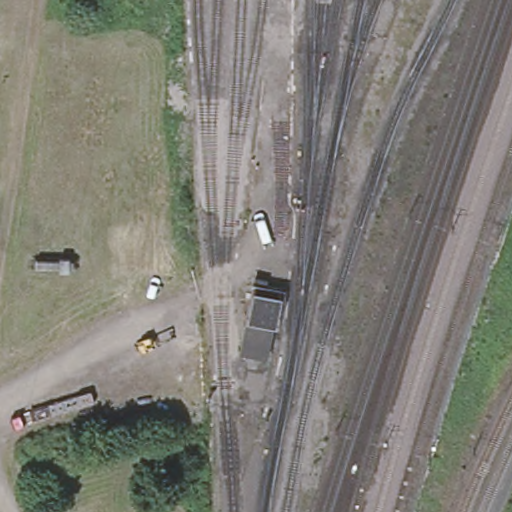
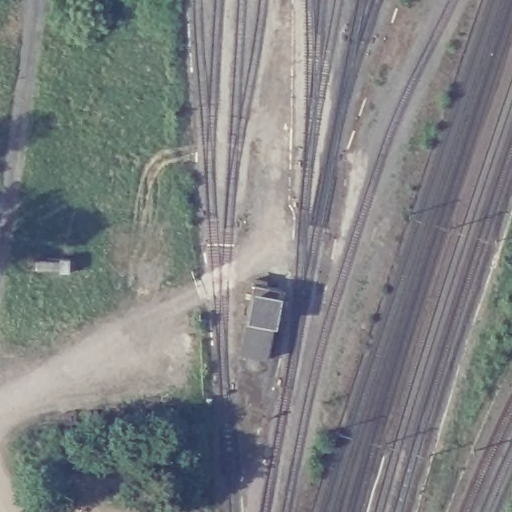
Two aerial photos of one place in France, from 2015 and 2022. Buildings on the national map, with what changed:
unchanged [(272,363),(238,356),(251,288),(286,295),(272,363)]

